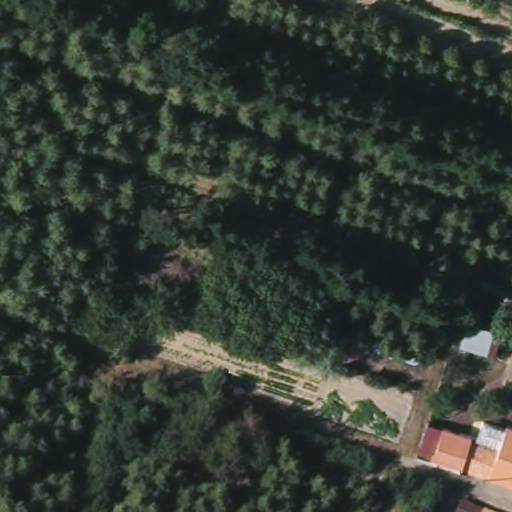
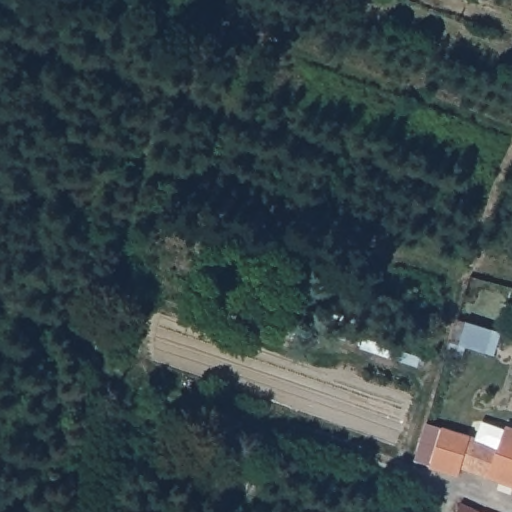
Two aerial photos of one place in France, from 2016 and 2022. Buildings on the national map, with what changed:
unchanged [(464,466),(461,473),(431,463),(444,427),(469,432),(480,435),(505,443),(512,428),(512,426),(512,483),(464,466)]
unchanged [(482,512),(471,512),(473,508),(482,512)]

